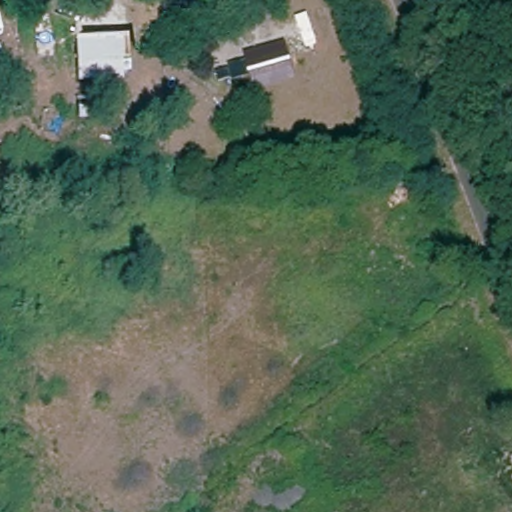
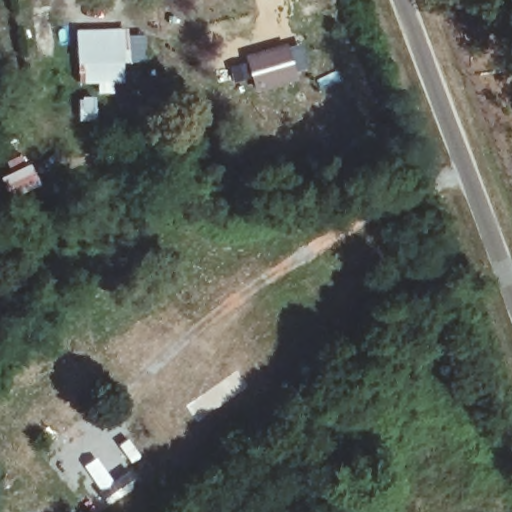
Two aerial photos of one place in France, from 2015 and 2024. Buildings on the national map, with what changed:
unchanged [(131,29),(134,61),(125,62),(124,84),(86,84),(85,64),(77,64),(74,32),(131,29)]
unchanged [(255,91),(244,56),(286,42),(296,79),(255,91)]

